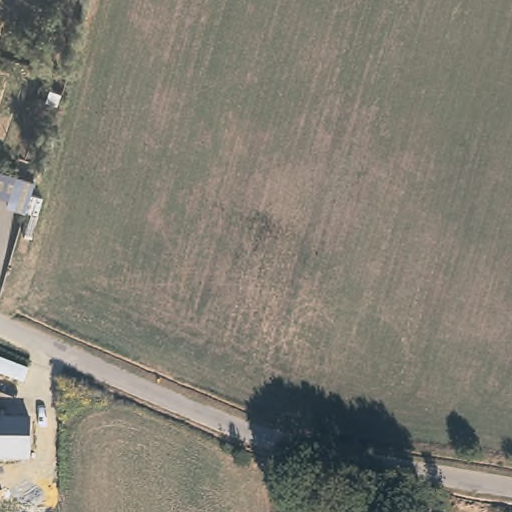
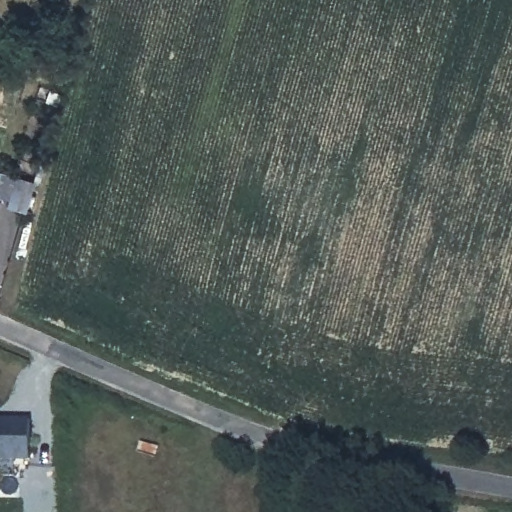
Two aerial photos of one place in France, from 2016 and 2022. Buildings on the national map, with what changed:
unchanged [(22,220),(2,214),(5,207),(0,205),(0,181),(30,191),(22,220)]
unchanged [(31,422),(31,459),(0,459),(0,422),(31,422)]

